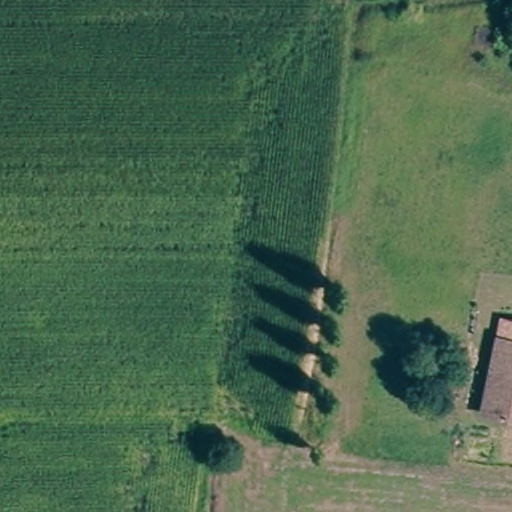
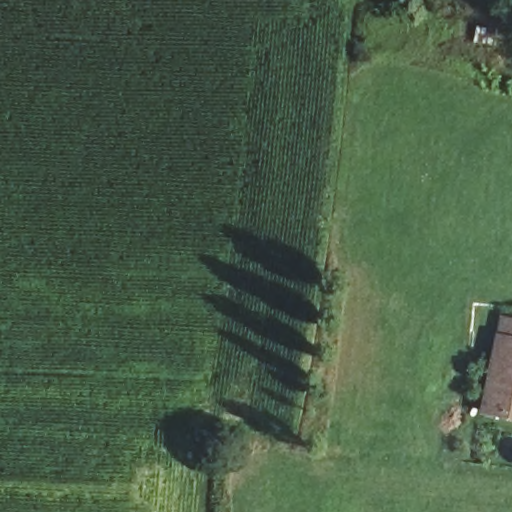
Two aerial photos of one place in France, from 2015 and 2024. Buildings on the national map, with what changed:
unchanged [(503,320),(512,322),(512,419),(483,413),(503,320)]

